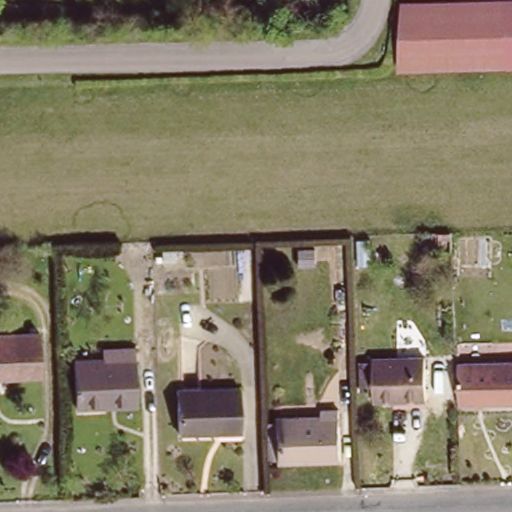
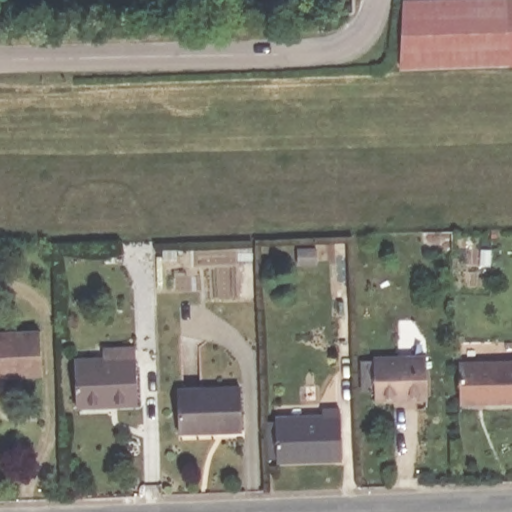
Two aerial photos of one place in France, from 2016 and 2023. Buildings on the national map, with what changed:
unchanged [(405,69),(406,64),(407,0),(416,0),(512,0),(512,65),(405,69)]
unchanged [(37,371),(0,374),(0,331),(34,328),(37,371)]
unchanged [(76,399),(75,360),(102,358),(102,349),(133,347),(136,405),(115,406),(77,408),(76,399)]
unchanged [(371,355),(422,353),(424,396),(372,398),(371,355)]
unchanged [(462,360),(512,358),(512,398),(463,400),(462,360)]
unchanged [(212,431),(177,433),(176,389),(237,386),(238,425),(239,431),(212,431)]
unchanged [(322,411),(322,405),(341,404),(342,456),(277,457),(260,458),(259,412),(277,412),(322,411)]

